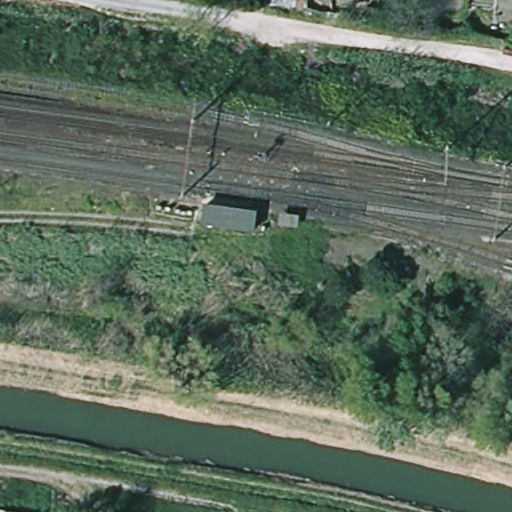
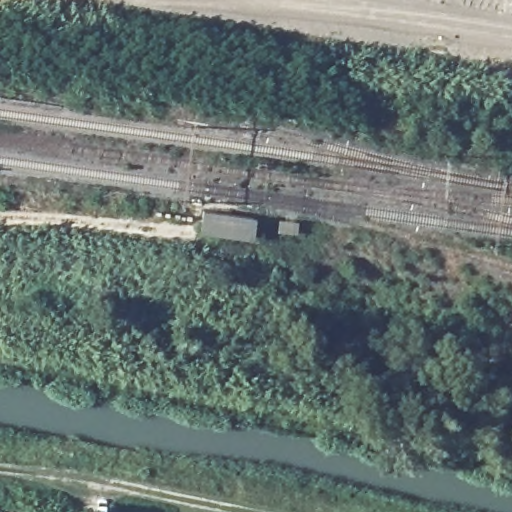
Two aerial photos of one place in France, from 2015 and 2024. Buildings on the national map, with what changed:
unchanged [(258,216),(255,237),(202,229),(205,209),(258,216)]
unchanged [(296,220),(294,233),(275,231),(276,217),(296,220)]

